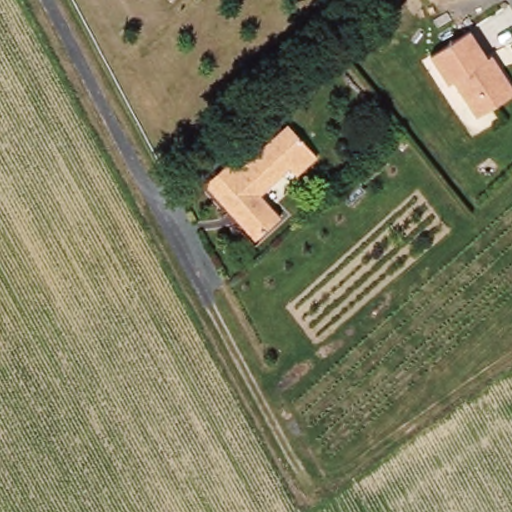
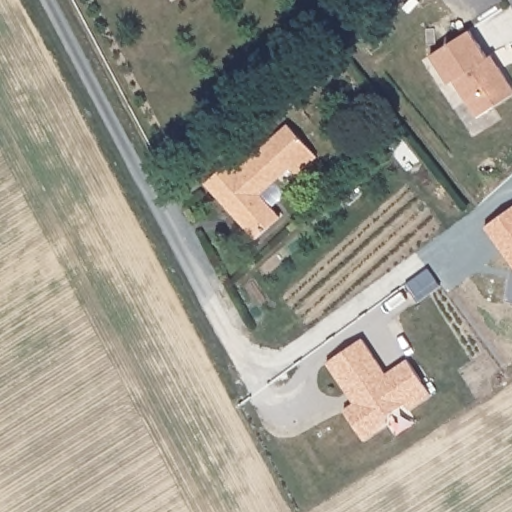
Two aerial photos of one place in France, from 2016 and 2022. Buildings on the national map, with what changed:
unchanged [(512,98),(480,120),(456,84),(451,87),(432,59),(471,33),(489,60),(493,57),(512,84),(512,98)]
unchanged [(211,190),(207,185),(220,172),(227,166),(236,167),(239,171),(290,126),(319,159),(298,177),(292,170),(262,196),(281,219),(256,241),(242,225),(231,212),(211,190)]
new [(362,338),(386,373),(407,358),(431,393),(409,408),(405,403),(389,415),(387,423),(364,440),(344,410),(354,402),(327,362),(362,338)]

